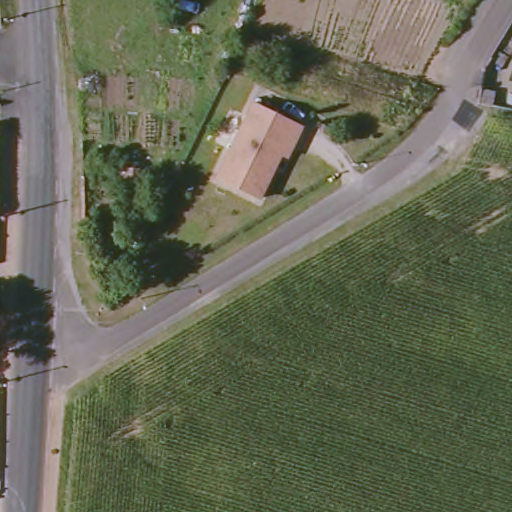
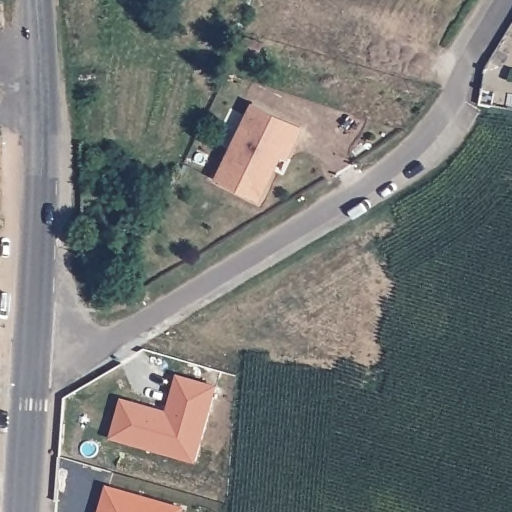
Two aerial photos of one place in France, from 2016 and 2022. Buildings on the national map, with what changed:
unchanged [(281,156),(260,201),(217,180),(254,103),(303,126),(291,151),(287,159),(281,156)]
new [(110,437),(119,399),(164,411),(175,375),(217,391),(194,465),(110,437)]
new [(186,507),(184,512),(100,512),(108,485),(186,507)]

